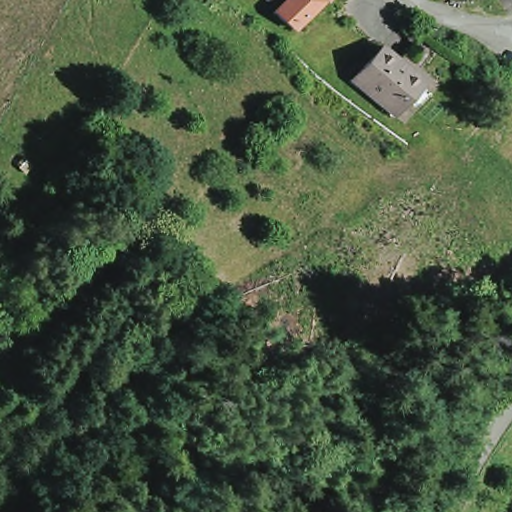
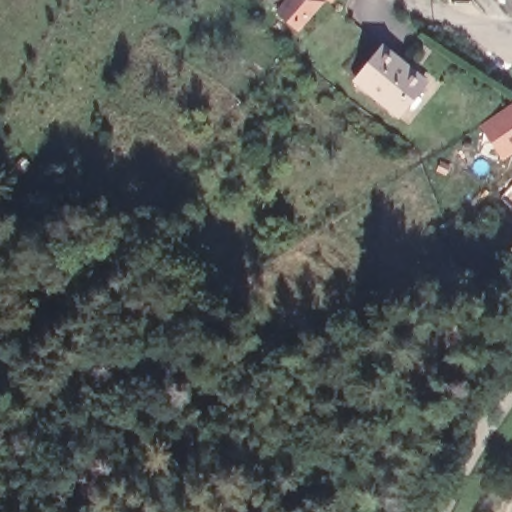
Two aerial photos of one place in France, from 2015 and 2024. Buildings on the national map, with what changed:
unchanged [(275,6),(269,0),(281,0),(275,6)]
unchanged [(297,32),(278,15),(289,3),(286,0),(325,0),(297,32)]
unchanged [(331,5),(326,0),(335,0),(331,5)]
unchanged [(384,56),(425,92),(398,124),(356,88),(384,56)]
unchanged [(500,76),(510,63),(512,65),(512,84),(500,76)]
new [(512,100),(512,153),(501,161),(476,128),(512,100)]

